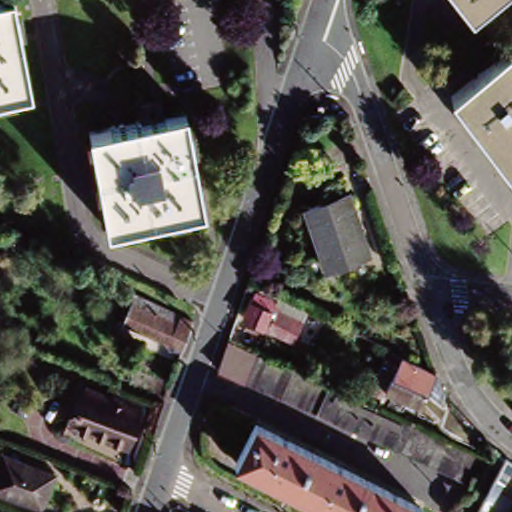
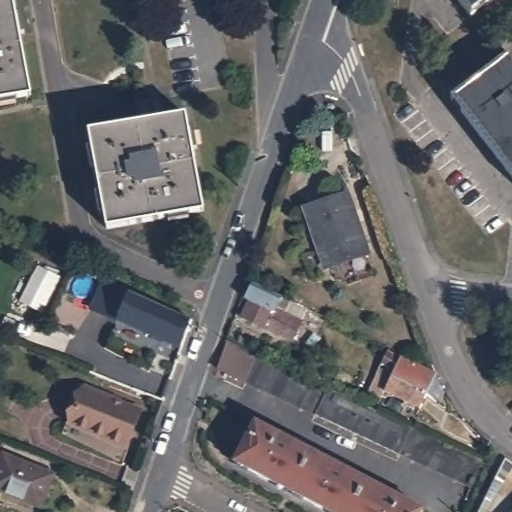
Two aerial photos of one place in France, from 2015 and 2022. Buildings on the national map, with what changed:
unchanged [(0,99),(0,0),(8,0),(24,95),(0,99)]
unchanged [(459,0),(489,0),(470,15),(459,0)]
unchanged [(508,50),(512,56),(512,177),(450,95),(508,50)]
unchanged [(182,115),(200,211),(104,229),(85,132),(182,115)]
unchanged [(345,195),(367,256),(326,270),(305,209),(345,195)]
unchanged [(120,318),(127,301),(116,297),(120,286),(127,288),(132,291),(190,313),(180,341),(120,318)]
unchanged [(277,303),(275,308),(300,320),(291,340),(240,315),(252,291),(277,303)]
unchanged [(422,395),(417,392),(384,376),(371,370),(382,349),(394,355),(427,371),(427,372),(420,387),(424,390),(422,395)]
unchanged [(352,431),(335,422),(318,414),(305,407),(289,400),(275,393),(261,386),(248,380),(261,352),(274,358),(289,365),(302,372),(305,374),(318,380),(332,386),(349,395),(352,396),(366,403),(377,408),(383,411),(400,420),(414,426),(415,427),(430,434),(442,440),(454,445),(456,446),(470,453),(483,460),(469,488),(455,482),(442,475),(429,468),(415,462),(400,455),(387,447),(370,440),(360,434),(352,431)]
unchanged [(103,391),(102,395),(137,408),(122,445),(68,423),(84,385),(103,391)]
unchanged [(418,509),(416,512),(330,512),(234,461),(253,422),(418,509)]
unchanged [(37,505),(0,491),(0,453),(50,472),(37,505)]
unchanged [(512,506),(512,512),(508,512),(512,506)]

